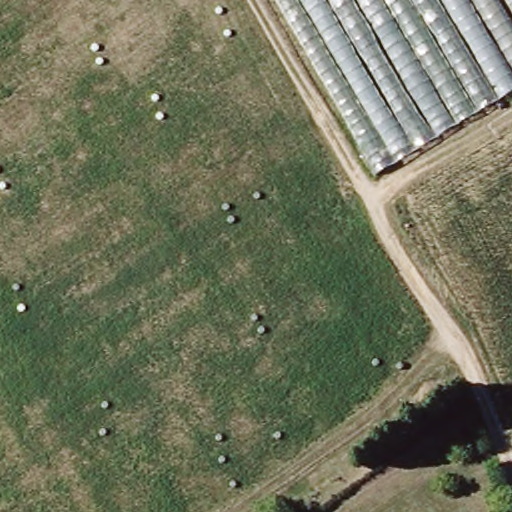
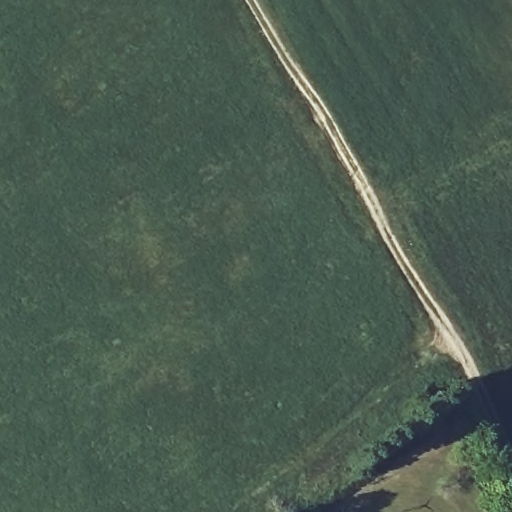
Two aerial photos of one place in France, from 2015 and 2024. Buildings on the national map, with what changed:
demolished [(512,0),(512,91),(378,176),(275,0),(512,0)]

